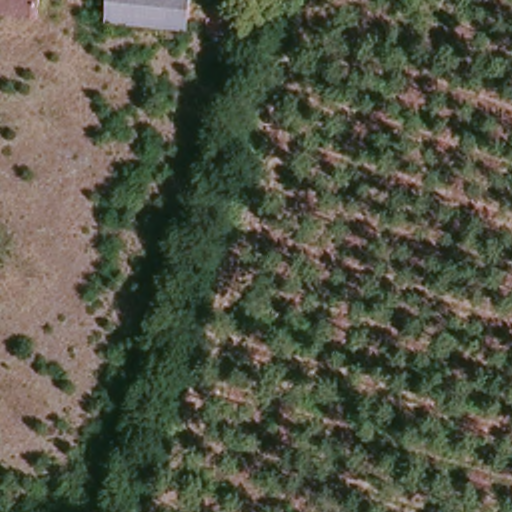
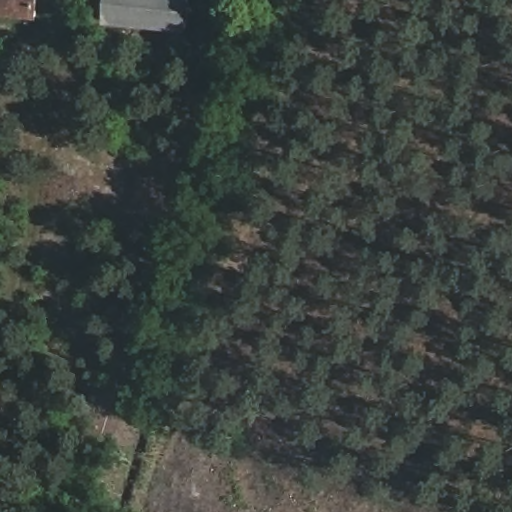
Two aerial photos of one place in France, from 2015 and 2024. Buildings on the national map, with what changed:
unchanged [(0,0),(37,0),(34,21),(0,14),(0,0)]
unchanged [(107,23),(111,0),(162,0),(157,32),(107,23)]
unchanged [(157,32),(162,0),(185,0),(179,37),(157,32)]
unchanged [(211,36),(214,0),(250,0),(247,17),(242,42),(211,36)]

